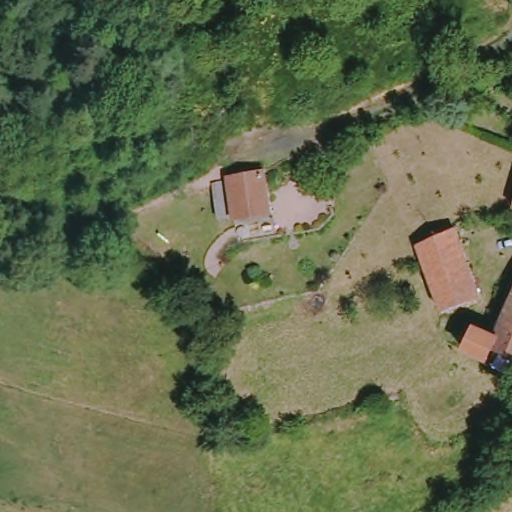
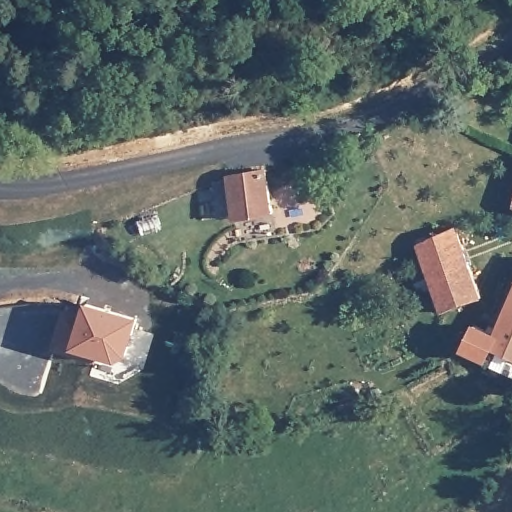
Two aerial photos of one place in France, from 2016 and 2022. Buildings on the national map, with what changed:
unchanged [(264,174),(273,218),(237,222),(228,180),(264,174)]
unchanged [(423,241),(460,226),(487,295),(449,310),(431,261),(423,241)]
new [(54,349),(64,309),(83,313),(85,302),(138,317),(129,353),(118,360),(99,355),(97,360),(54,349)]
unchanged [(512,311),(512,321),(504,318),(512,311)]
unchanged [(493,359),(469,345),(478,325),(500,336),(504,318),(512,321),(512,353),(498,348),(493,359)]

